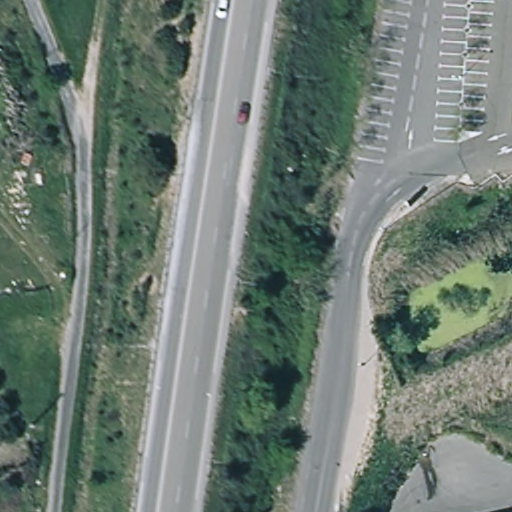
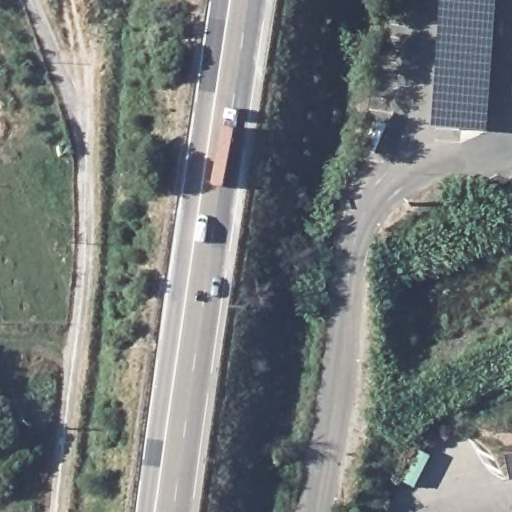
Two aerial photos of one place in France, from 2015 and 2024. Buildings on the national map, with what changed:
new [(488,134),(434,128),(444,0),(499,0),(488,134)]

